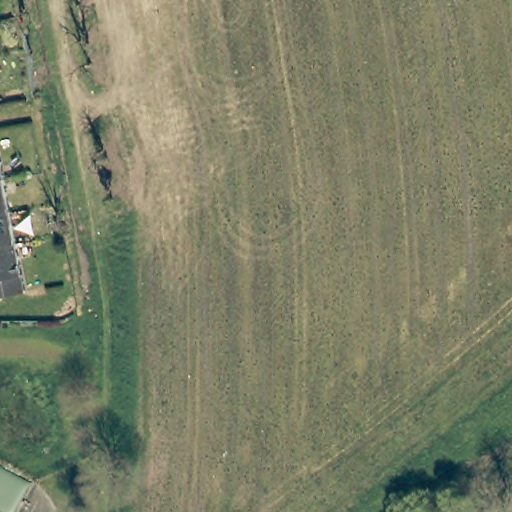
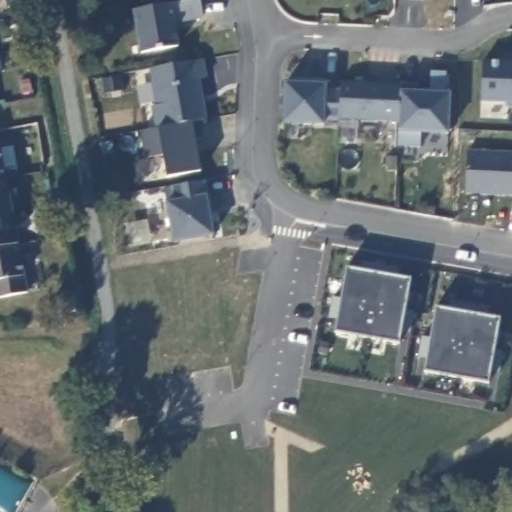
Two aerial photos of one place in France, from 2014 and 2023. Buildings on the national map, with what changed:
new [(202,19),(175,26),(179,46),(142,53),(134,11),(199,0),(202,19)]
new [(510,62),(510,60),(512,60),(512,104),(481,103),(482,61),(510,62)]
new [(207,80),(199,82),(207,121),(200,122),(202,140),(195,143),(201,172),(167,178),(164,157),(147,160),(141,132),(155,129),(152,107),(156,107),(149,70),(203,61),(207,80)]
new [(448,135),(422,134),(420,149),(397,148),(399,132),(398,124),(326,122),(326,126),(282,125),(283,84),(327,85),(326,91),(340,90),(339,83),(401,85),(415,86),(414,93),(450,95),(448,135)]
unchanged [(0,294),(0,140),(25,290),(0,294)]
new [(512,153),(512,197),(466,195),(467,152),(512,153)]
new [(166,203),(174,202),(171,187),(205,181),(211,213),(209,213),(212,235),(173,242),(166,203)]
new [(399,343),(335,333),(347,270),(410,282),(399,343)]
new [(487,383),(426,372),(437,309),(498,320),(487,383)]

